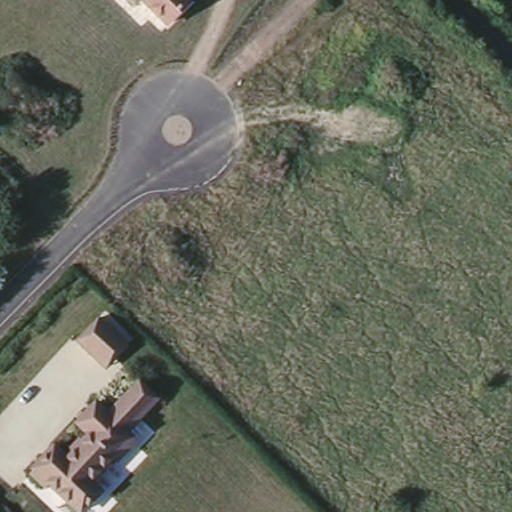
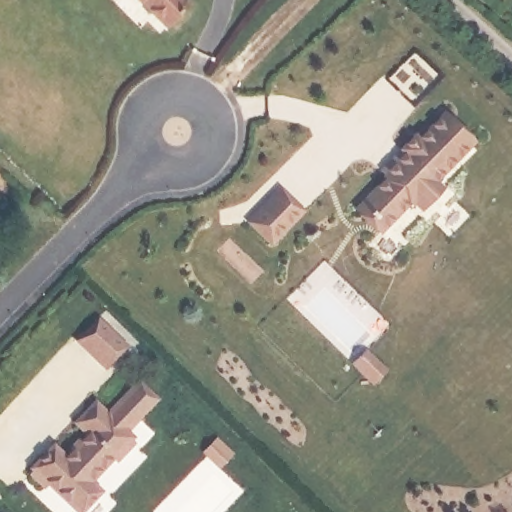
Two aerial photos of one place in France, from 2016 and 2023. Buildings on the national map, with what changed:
unchanged [(139,0),(191,0),(193,1),(167,29),(139,0)]
new [(352,205),(442,114),(472,144),(435,183),(443,191),(419,215),(411,207),(379,240),(352,205)]
new [(280,188),(304,212),(271,248),(247,222),(280,188)]
unchanged [(105,372),(74,342),(98,318),(128,346),(105,372)]
unchanged [(129,429),(141,439),(118,464),(114,461),(95,483),(105,493),(87,512),(73,512),(31,473),(54,443),(66,454),(84,436),(75,425),(98,399),(110,411),(140,380),(159,400),(129,429)]

